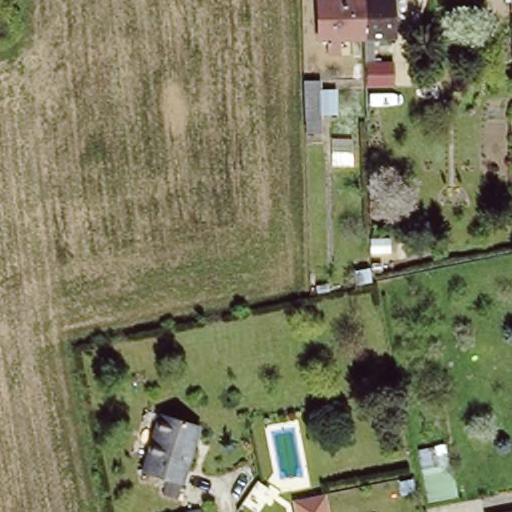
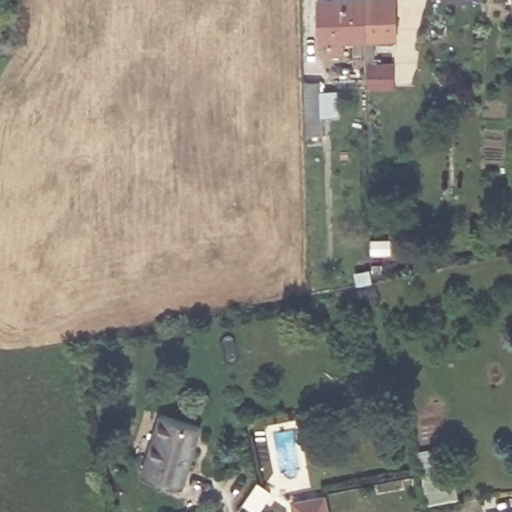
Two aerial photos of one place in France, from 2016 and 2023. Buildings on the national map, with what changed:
unchanged [(331,34),(321,34),(320,0),(392,0),(392,23),(392,33),(364,33),(346,34),(346,48),(340,48),(331,48),(331,43),(331,34)]
unchanged [(511,12),(511,0),(512,0),(512,13),(511,12)]
unchanged [(304,79),(321,79),(322,89),(337,89),(338,113),(322,114),(322,131),(305,132),(304,79)]
unchanged [(162,414),(200,426),(180,483),(142,470),(148,455),(162,414)]
unchanged [(418,448),(437,445),(441,465),(452,463),(459,499),(430,504),(418,448)]
unchanged [(326,512),(290,512),(289,503),(322,496),(326,512)]
unchanged [(485,512),(512,507),(512,512),(485,512)]

